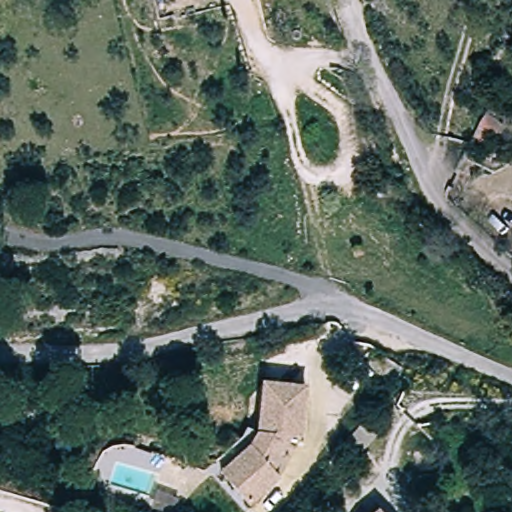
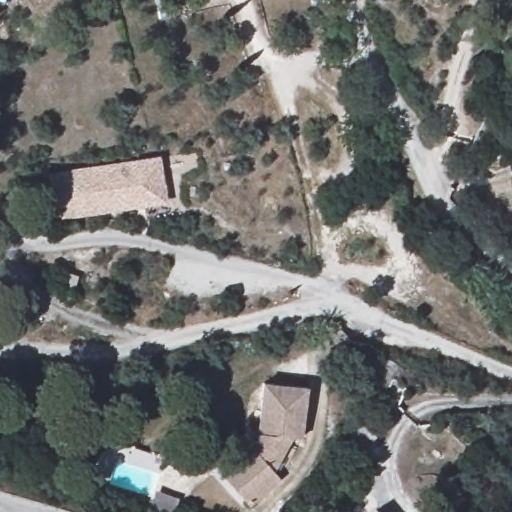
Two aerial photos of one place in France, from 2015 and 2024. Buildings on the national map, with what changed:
unchanged [(290,4),(260,11),(258,0),(289,0),(290,4)]
new [(159,156),(168,204),(62,221),(53,174),(159,156)]
unchanged [(222,474),(253,446),(260,435),(264,385),(311,389),(306,442),(294,442),(284,462),(277,475),(281,479),(284,483),(253,511),(252,509),(248,504),(222,474)]
unchanged [(373,512),(381,504),(389,512),(373,512)]

